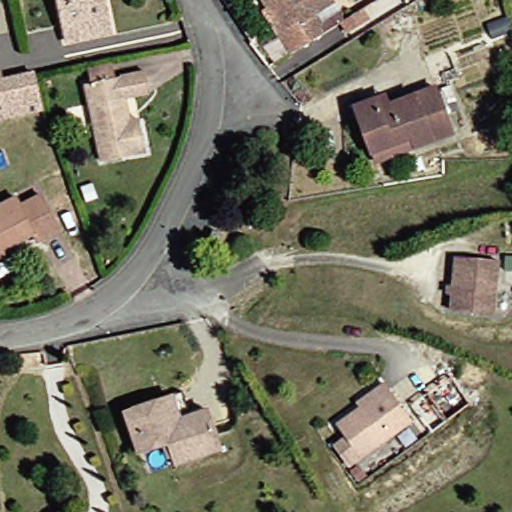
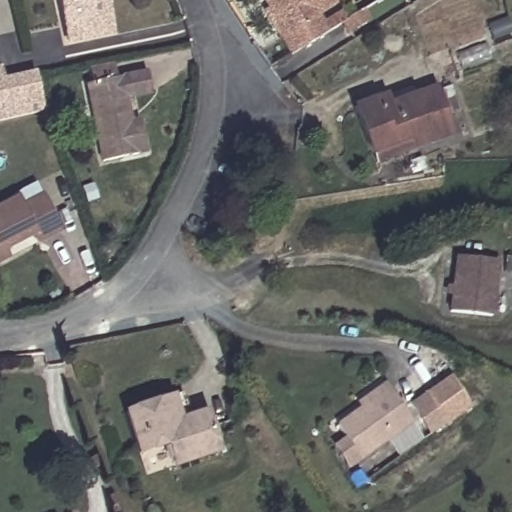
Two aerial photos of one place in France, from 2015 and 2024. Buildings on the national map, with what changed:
unchanged [(118,31),(72,41),(62,0),(111,0),(118,31)]
unchanged [(277,6),(273,0),(335,0),(326,5),(334,18),(344,10),(350,19),(339,26),(299,54),(286,32),(271,9),(277,6)]
unchanged [(150,130),(155,155),(109,163),(93,86),(98,85),(94,62),(99,61),(119,57),(123,80),(154,74),(158,95),(133,100),(138,120),(147,119),(150,130)]
unchanged [(47,113),(0,120),(0,69),(38,62),(47,113)]
unchanged [(377,150),(363,109),(383,100),(387,111),(442,91),(458,132),(423,145),(381,160),(377,150)]
unchanged [(0,213),(24,200),(27,207),(49,196),(67,231),(46,242),(42,235),(12,251),(16,258),(4,265),(0,267),(0,213)]
unchanged [(499,258),(496,310),(456,305),(461,254),(499,258)]
new [(451,375),(472,406),(432,434),(411,404),(451,375)]
unchanged [(355,437),(347,425),(371,406),(367,400),(391,382),(396,388),(418,420),(359,465),(351,453),(345,445),(355,437)]
unchanged [(172,445),(144,455),(131,411),(167,398),(185,392),(193,413),(210,407),(225,447),(177,464),(172,445)]

